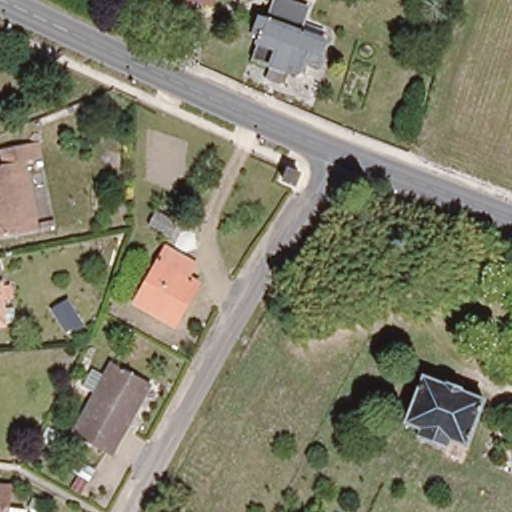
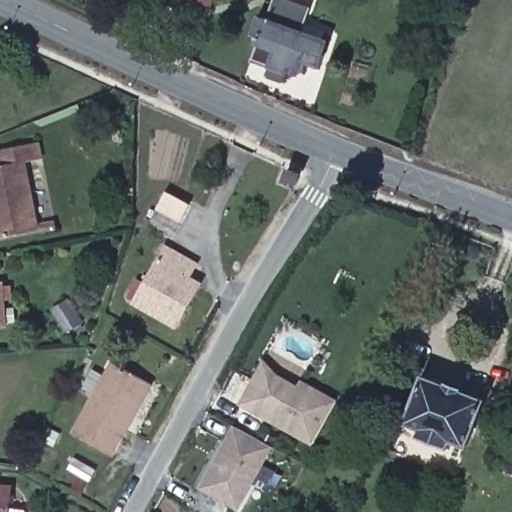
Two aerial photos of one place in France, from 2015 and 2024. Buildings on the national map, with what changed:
unchanged [(267,81),(271,69),(252,61),(260,38),(255,36),(261,20),(272,23),(279,6),(314,18),(310,28),(307,36),(327,44),(319,68),(303,62),(304,65),(305,68),(304,73),(297,78),(288,71),(286,75),(282,86),(267,81)]
unchanged [(15,144),(35,140),(44,177),(25,182),(35,225),(0,233),(0,162),(17,158),(15,144)]
unchanged [(289,166),(300,171),(294,185),(283,180),(289,166)]
unchanged [(187,217),(180,231),(156,217),(164,203),(187,217)]
unchanged [(186,305),(175,325),(135,301),(165,251),(191,264),(186,274),(191,277),(199,283),(186,305)]
unchanged [(11,287),(12,301),(4,302),(4,327),(0,328),(0,285),(1,284),(2,288),(11,287)]
new [(238,404),(263,358),(272,363),(269,368),(297,383),(300,379),(338,400),(312,443),(238,404)]
unchanged [(152,383),(112,454),(74,433),(97,391),(83,383),(94,366),(107,374),(114,361),(152,383)]
unchanged [(444,448),(416,437),(419,429),(403,423),(420,376),(443,385),(445,381),(460,387),(459,391),(483,399),(464,446),(461,454),(444,448)]
new [(239,511),(200,490),(233,425),(274,447),(239,511)]
unchanged [(505,452),(511,440),(512,440),(512,457),(505,452)]
unchanged [(93,495),(70,481),(71,479),(80,465),(104,478),(101,483),(93,495)]
unchanged [(6,507),(24,509),(23,512),(0,512),(0,486),(6,486),(6,507)]

